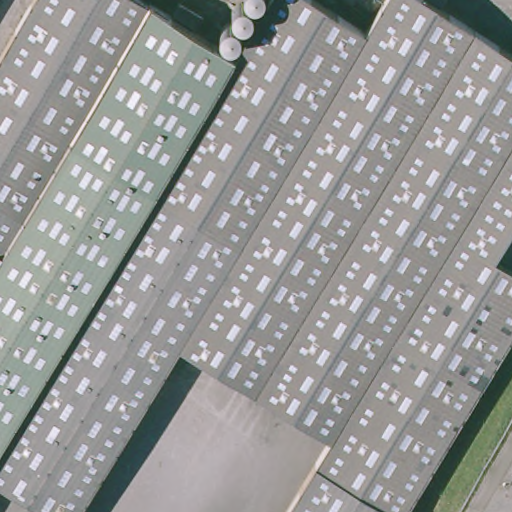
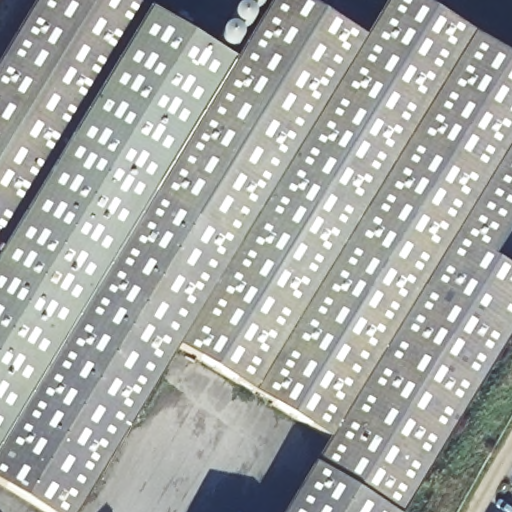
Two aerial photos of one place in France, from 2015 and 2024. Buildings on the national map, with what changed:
unchanged [(30,0),(136,0),(229,57),(264,0),(309,0),(361,32),(380,0),(422,0),(512,56),(512,218),(507,227),(512,231),(512,324),(397,512),(276,512),(324,434),(175,342),(70,512),(49,512),(0,482),(0,48),(30,0)]

